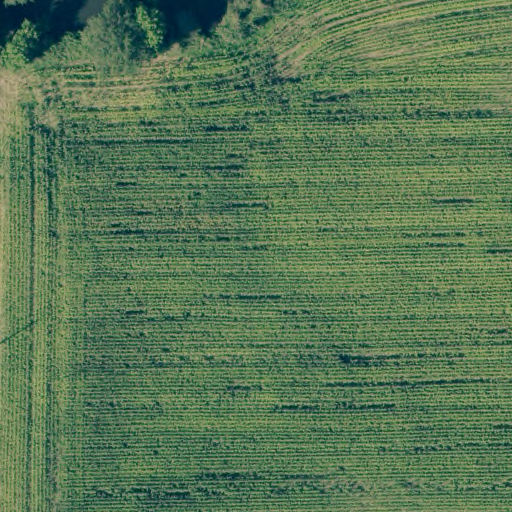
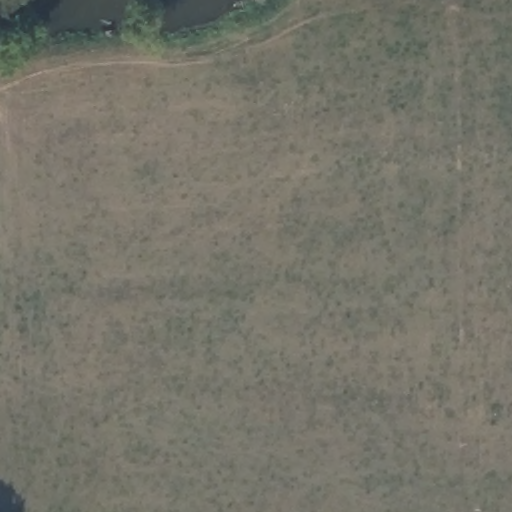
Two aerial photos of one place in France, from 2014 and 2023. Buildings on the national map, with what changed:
[]

